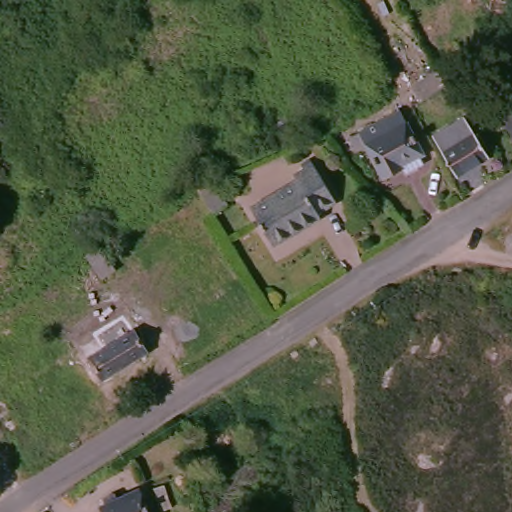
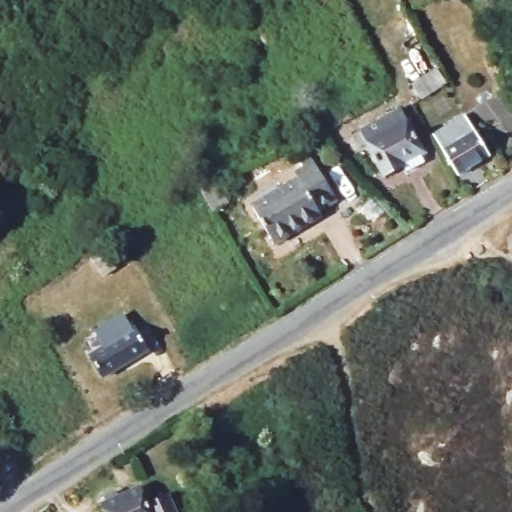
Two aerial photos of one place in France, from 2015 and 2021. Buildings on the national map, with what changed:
unchanged [(424,109),(414,94),(438,78),(449,92),(424,109)]
unchanged [(409,174),(407,170),(386,180),(369,149),(360,153),(354,141),(403,113),(431,161),(409,174)]
unchanged [(492,160),(462,179),(437,139),(467,120),(492,160)]
unchanged [(339,199),(322,210),(324,214),(277,244),(254,206),(301,177),(297,173),(315,163),(339,199)]
unchanged [(199,198),(219,189),(232,213),(214,223),(199,198)]
unchanged [(102,254),(119,278),(104,287),(88,262),(102,254)]
unchanged [(90,357),(84,347),(126,323),(129,330),(134,329),(149,355),(104,383),(90,357)]
unchanged [(99,507),(106,504),(103,498),(114,493),(117,499),(139,489),(150,512),(102,512),(99,507)]

